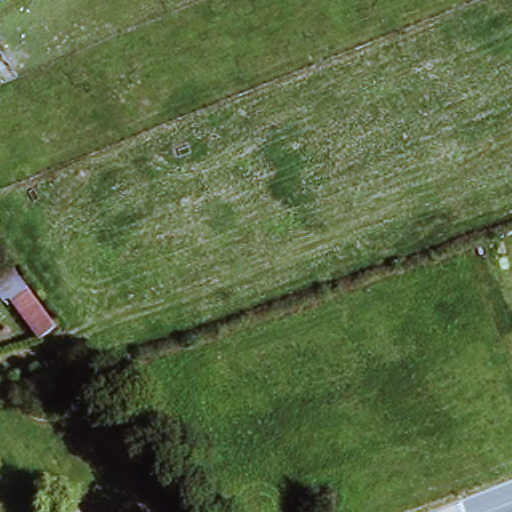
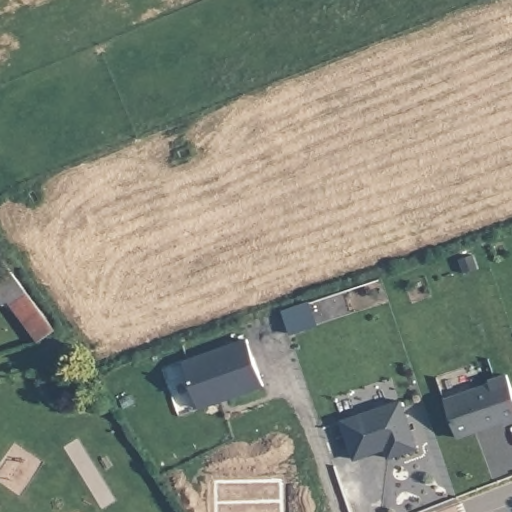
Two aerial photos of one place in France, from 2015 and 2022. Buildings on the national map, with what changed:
unchanged [(17,307),(13,309),(0,292),(0,269),(3,267),(49,328),(40,335),(17,307)]
new [(243,336),(258,382),(236,390),(235,387),(215,395),(216,397),(193,405),(177,358),(243,336)]
new [(491,382),(490,379),(507,373),(512,388),(512,424),(504,427),(503,425),(457,440),(445,398),(491,382)]
new [(401,399),(416,447),(387,456),(384,445),(376,447),(375,450),(354,456),(342,417),(401,399)]

